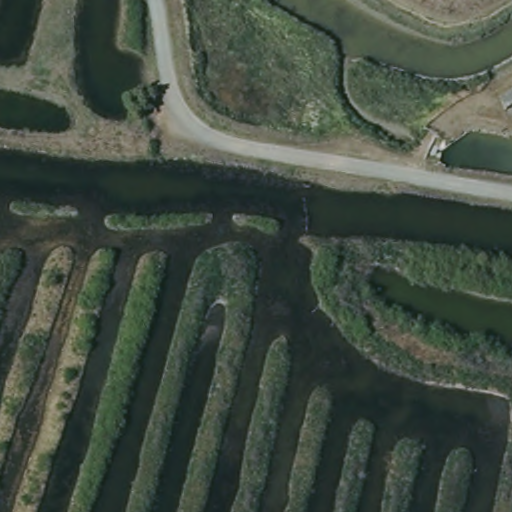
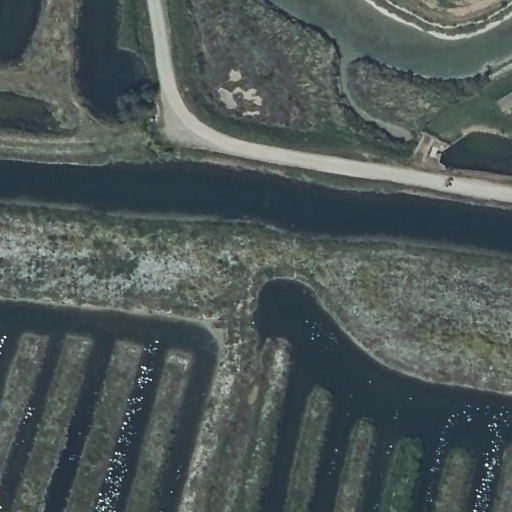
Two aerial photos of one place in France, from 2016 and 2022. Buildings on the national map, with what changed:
unchanged [(509,109),(501,101),(512,94),(512,107),(509,109)]

